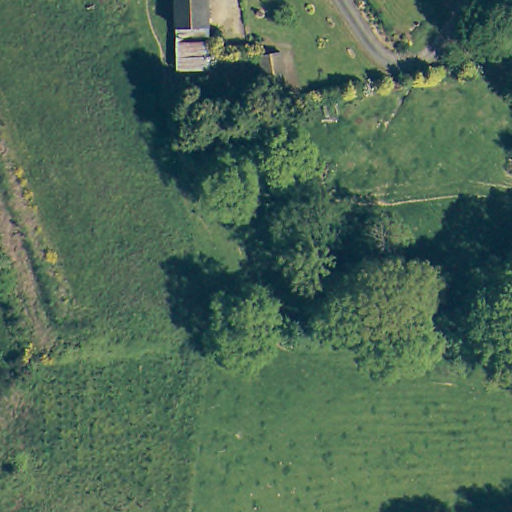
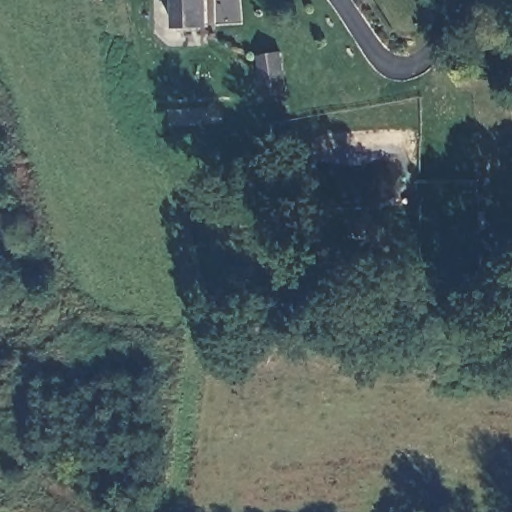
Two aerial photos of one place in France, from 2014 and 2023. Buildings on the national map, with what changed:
unchanged [(172,30),(174,0),(208,0),(207,31),(172,30)]
unchanged [(250,73),(257,72),(253,53),(281,48),(287,87),(282,89),(274,91),(255,96),(250,73)]

